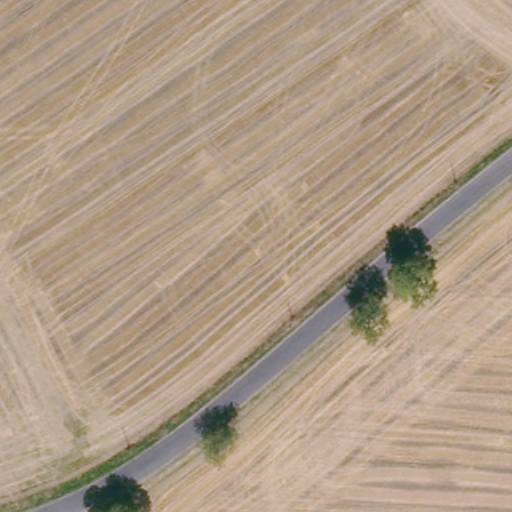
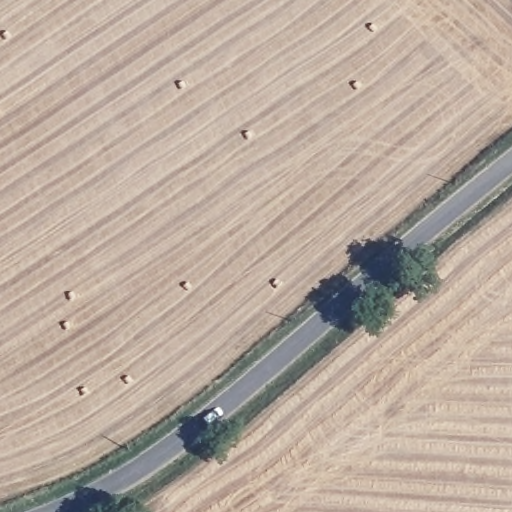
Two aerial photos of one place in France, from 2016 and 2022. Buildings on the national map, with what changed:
[]

